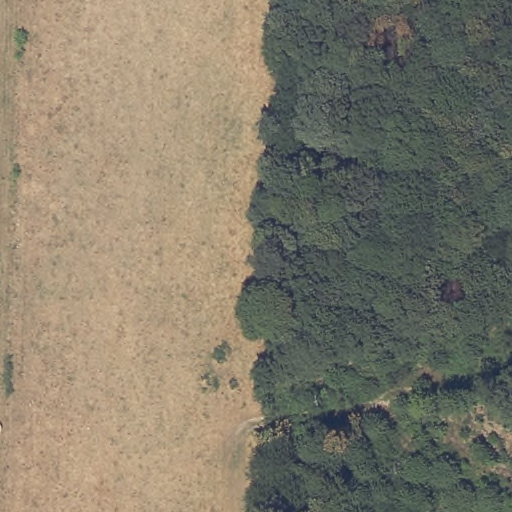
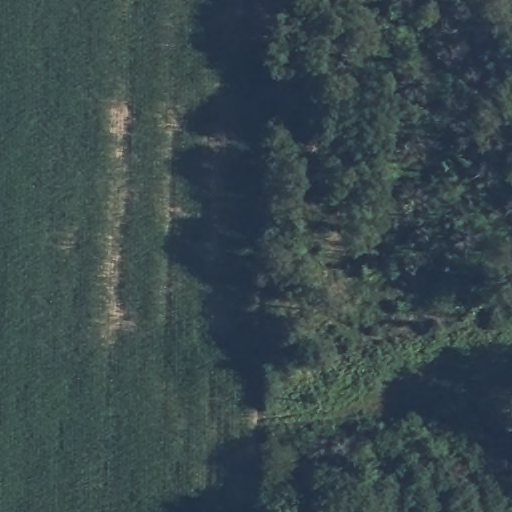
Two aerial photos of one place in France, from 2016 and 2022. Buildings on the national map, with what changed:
[]

